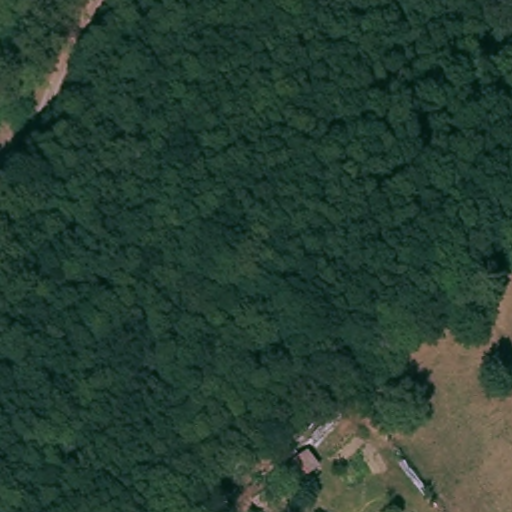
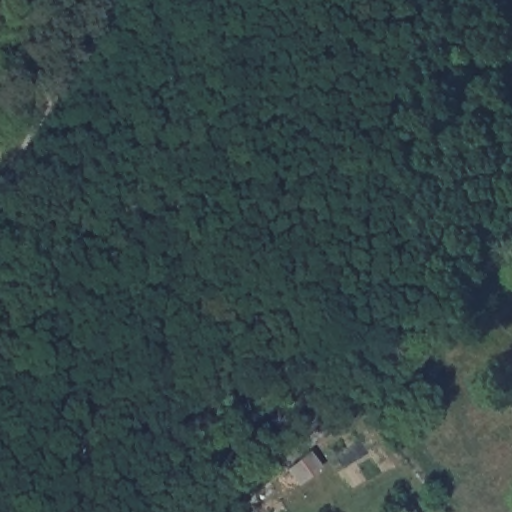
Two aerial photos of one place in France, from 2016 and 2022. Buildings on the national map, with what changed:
unchanged [(300,494),(289,480),(312,465),(322,479),(300,494)]

